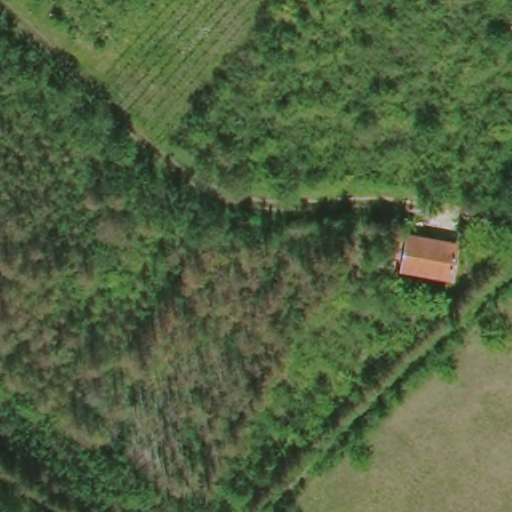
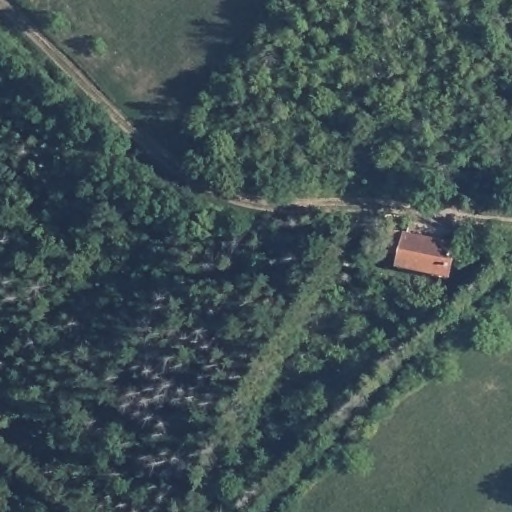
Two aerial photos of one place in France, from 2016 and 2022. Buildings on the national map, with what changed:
unchanged [(462,275),(412,275),(412,265),(400,265),(401,245),(462,245),(462,275)]

